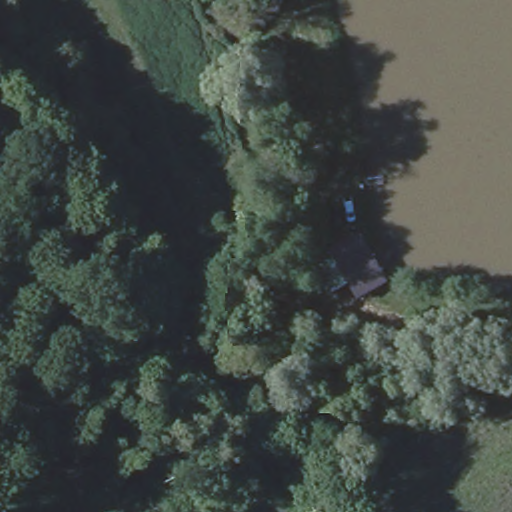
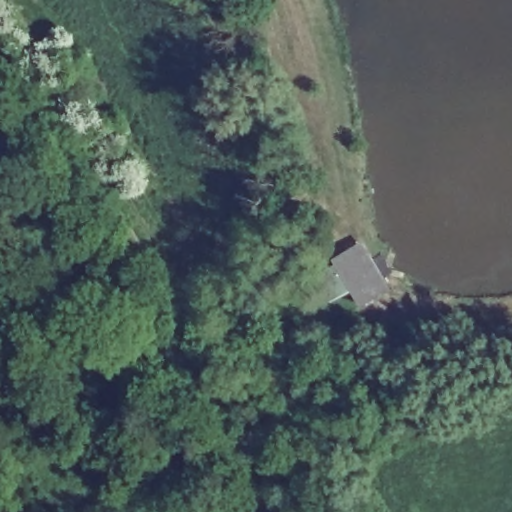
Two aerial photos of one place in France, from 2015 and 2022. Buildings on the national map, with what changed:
unchanged [(340,238),(367,283),(352,292),(327,246),(340,238)]

